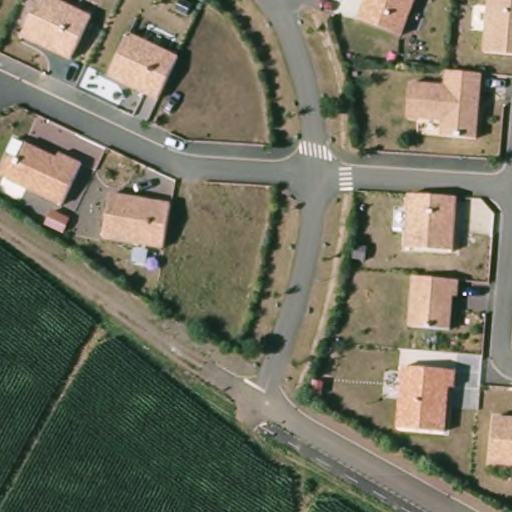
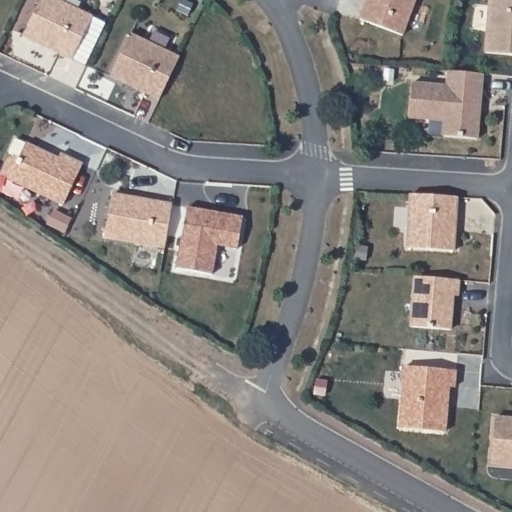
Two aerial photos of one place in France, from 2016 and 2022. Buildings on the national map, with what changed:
unchanged [(74,62),(24,39),(42,0),(61,0),(94,16),(74,62)]
unchanged [(366,0),(415,0),(403,35),(359,17),(366,0)]
unchanged [(512,0),(512,53),(485,51),(489,0),(512,0)]
unchanged [(160,101),(110,77),(128,35),(179,57),(160,101)]
unchanged [(443,135),(443,120),(407,117),(410,82),(446,85),(447,71),(482,74),(477,137),(443,135)]
unchanged [(1,175),(9,157),(16,162),(25,141),(59,158),(61,153),(82,164),(63,205),(1,175)]
unchanged [(164,246),(105,239),(111,194),(112,193),(169,205),(164,246)]
unchanged [(409,194),(458,196),(455,250),(406,247),(409,194)]
new [(187,207),(243,217),(237,249),(217,246),(212,275),(176,268),(187,207)]
unchanged [(450,331),(412,328),(415,280),(458,282),(458,298),(452,299),(450,331)]
unchanged [(458,390),(451,390),(448,432),(399,429),(402,366),(459,371),(458,390)]
unchanged [(512,417),(512,466),(491,465),(496,415),(512,417)]

